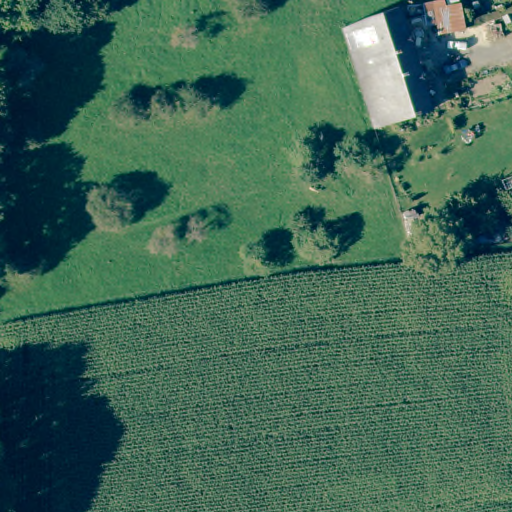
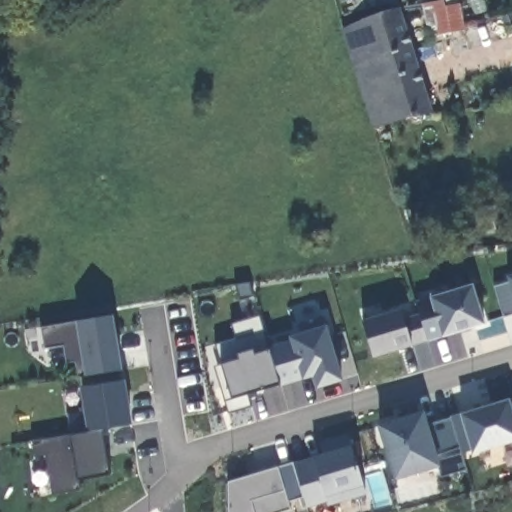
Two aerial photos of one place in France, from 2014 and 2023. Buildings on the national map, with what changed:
unchanged [(460,4),(463,21),(465,31),(438,35),(434,11),(425,13),(423,4),(443,0),(445,7),(460,4)]
unchanged [(431,112),(375,130),(343,31),(350,27),(365,19),(398,7),(431,112)]
new [(508,277),(512,275),(512,315),(501,318),(493,287),(509,282),(508,277)]
new [(485,325),(443,337),(374,358),(362,321),(402,310),(405,316),(418,313),(416,301),(431,297),(473,285),(485,325)]
new [(77,322),(114,316),(122,369),(85,375),(79,377),(76,362),(66,363),(64,346),(44,349),(42,328),(77,322)]
new [(237,338),(232,324),(258,317),(269,346),(290,341),(289,336),(300,333),(299,325),(323,318),(320,327),(326,326),(343,382),(316,390),(313,378),(302,380),(281,385),(245,396),(250,406),(228,413),(214,367),(222,364),(216,346),(237,338)]
new [(126,380),(132,424),(100,430),(109,474),(78,480),(80,489),(51,494),(45,456),(34,458),(30,442),(72,435),(89,432),(81,388),(126,380)]
new [(471,449),(461,454),(465,469),(442,476),(436,468),(395,480),(379,426),(424,411),(427,424),(460,414),(509,399),(512,398),(512,443),(473,455),(471,449)]
new [(329,506),(327,502),(306,508),(303,496),(287,502),(289,509),(279,512),(228,512),(227,482),(314,455),(321,454),(320,443),(347,433),(367,494),(329,506)]

